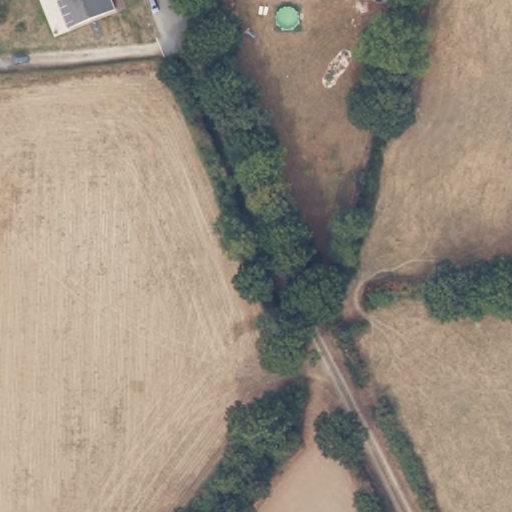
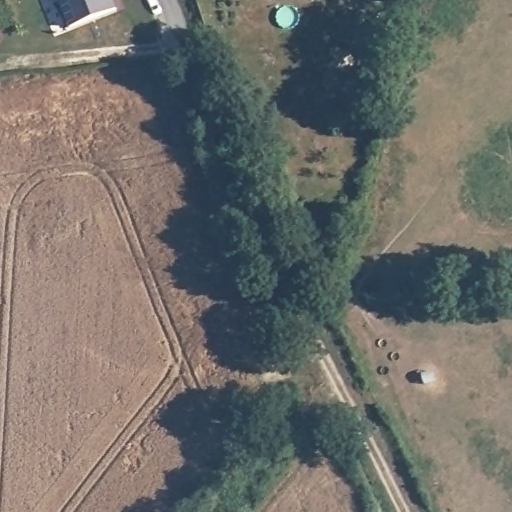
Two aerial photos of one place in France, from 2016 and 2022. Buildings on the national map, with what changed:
unchanged [(117,0),(121,9),(75,27),(64,0),(117,0)]

